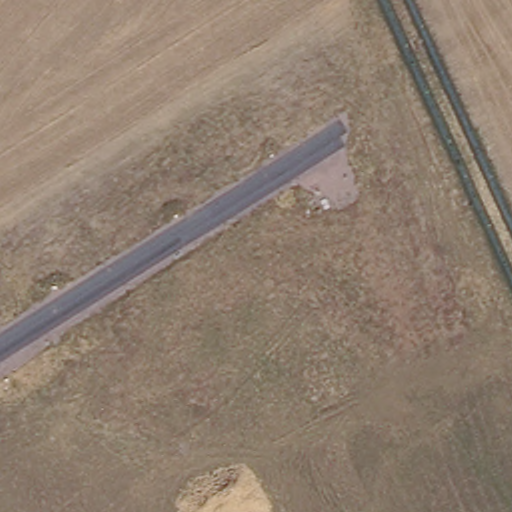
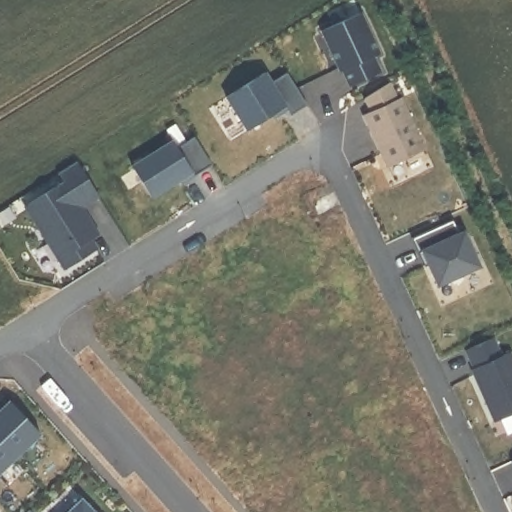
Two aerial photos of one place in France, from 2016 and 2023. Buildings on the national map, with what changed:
new [(377,52),(371,55),(378,71),(350,84),(342,68),(340,69),(321,29),(360,11),(377,52)]
new [(306,103),(290,113),(284,104),(246,128),(225,95),(264,71),(270,80),(286,71),(306,103)]
new [(396,98),(400,96),(425,148),(386,166),(362,114),(370,110),(363,97),(388,81),(396,98)]
new [(273,117),(270,113),(284,104),(286,108),(273,117)]
new [(211,163),(193,174),(190,170),(150,195),(131,164),(172,139),(176,145),(194,135),(211,163)]
new [(96,233),(89,238),(95,248),(64,267),(31,216),(35,214),(26,201),(62,179),(56,171),(75,159),(97,193),(79,205),(86,216),(90,223),(96,233)]
new [(180,182),(177,178),(190,170),(193,174),(180,182)]
new [(478,266),(436,284),(420,249),(462,230),(478,266)]
new [(500,355),(509,351),(512,358),(512,412),(493,421),(470,368),(472,367),(464,349),(491,337),(500,355)]
new [(8,399),(39,432),(15,454),(0,438),(0,406),(8,399)]
new [(15,454),(0,468),(0,438),(15,454)]
new [(512,459),(512,461),(511,459),(512,459)]
new [(80,498),(93,512),(64,512),(80,498)]

